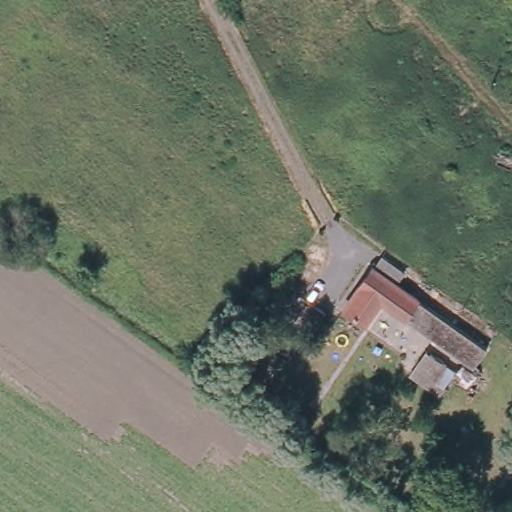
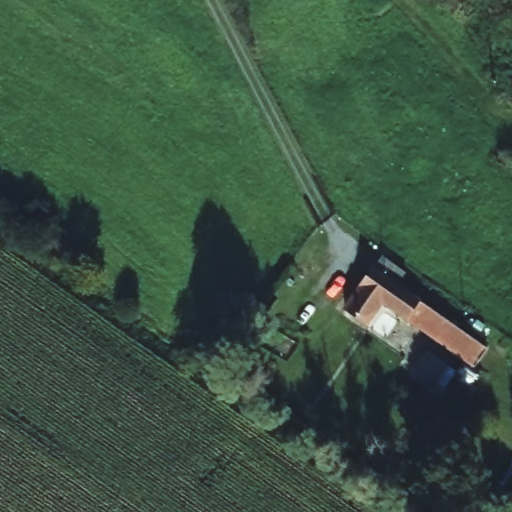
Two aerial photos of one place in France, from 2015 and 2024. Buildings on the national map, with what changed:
unchanged [(475,368),(405,320),(382,304),(367,326),(342,308),(372,265),(374,266),(382,257),(403,273),(395,284),(420,302),(487,349),(475,368)]
unchanged [(455,370),(462,365),(478,375),(467,391),(452,380),(438,400),(407,378),(425,351),(455,370)]

